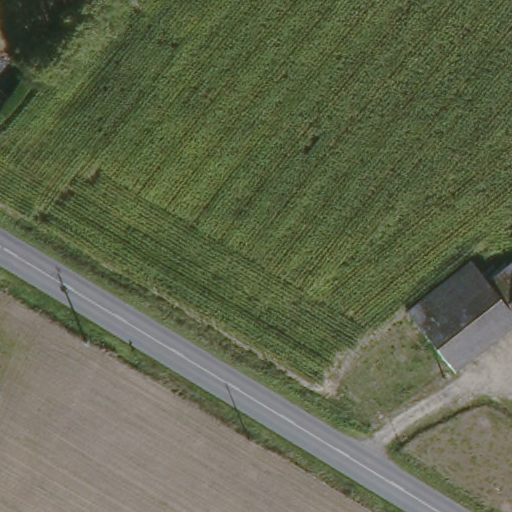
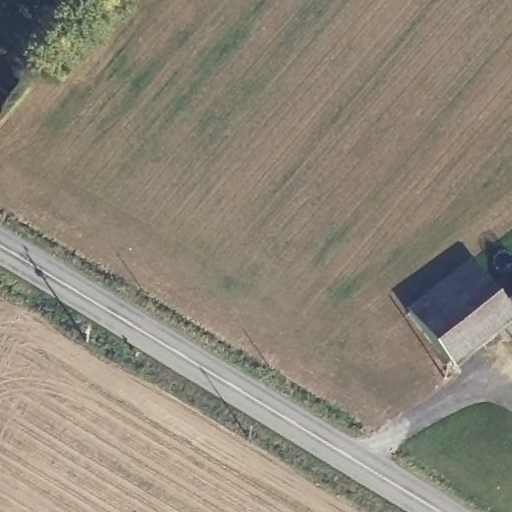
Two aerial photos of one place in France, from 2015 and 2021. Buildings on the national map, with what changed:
unchanged [(511,264),(512,265),(512,300),(506,306),(501,311),(483,292),(511,264)]
unchanged [(511,322),(455,379),(451,375),(404,329),(462,269),(483,292),(501,311),(511,322)]
unchanged [(512,300),(512,312),(506,306),(512,300)]

